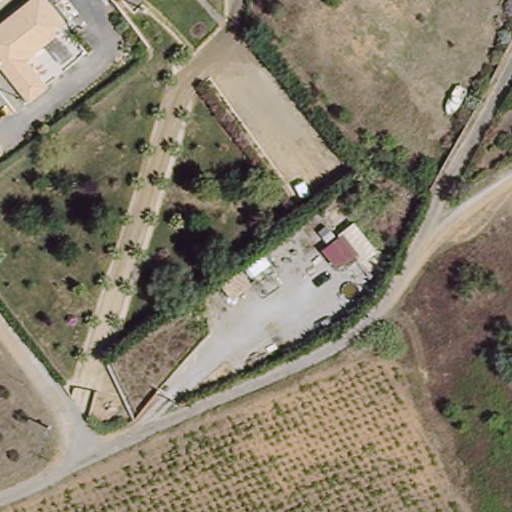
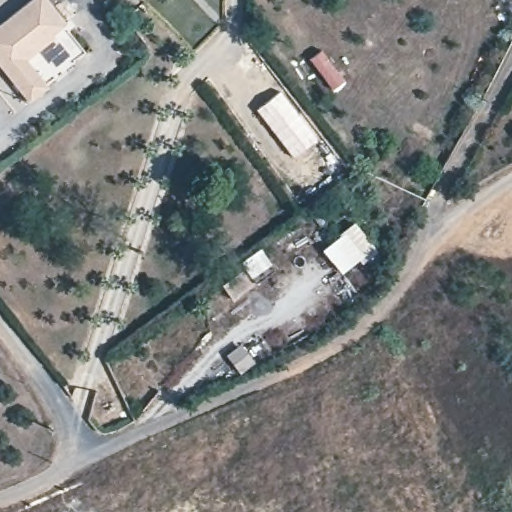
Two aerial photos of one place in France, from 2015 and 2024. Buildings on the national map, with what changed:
unchanged [(30,102),(0,65),(0,38),(44,5),(57,20),(43,32),(51,41),(21,65),(44,91),(30,102)]

